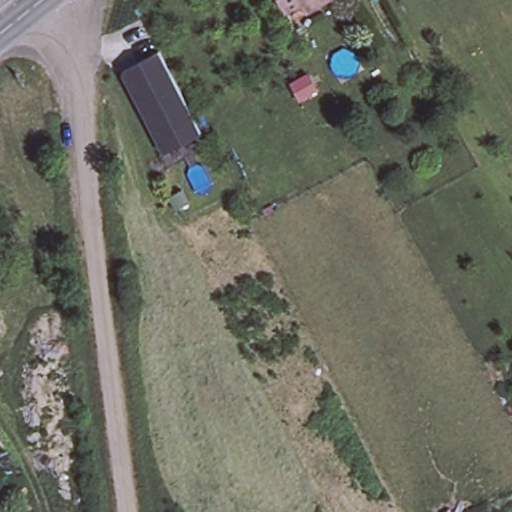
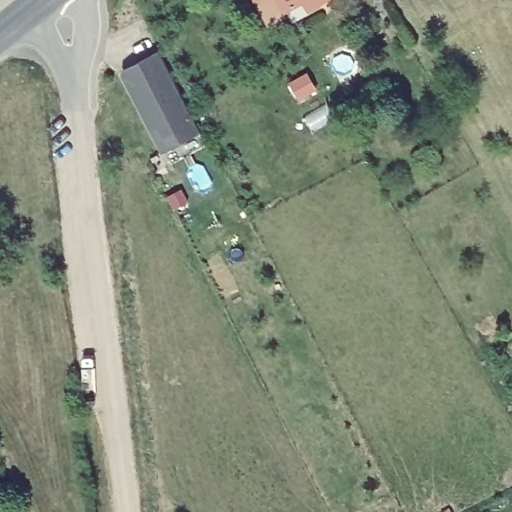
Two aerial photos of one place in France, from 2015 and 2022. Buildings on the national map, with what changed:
unchanged [(305,10),(300,1),(284,10),(278,0),(322,0),(305,10)]
unchanged [(205,134),(164,157),(157,143),(162,141),(122,66),(122,61),(156,43),(175,77),(198,121),(200,125),(205,134)]

